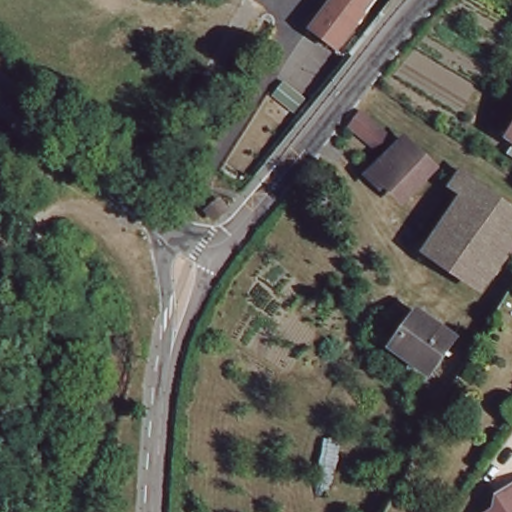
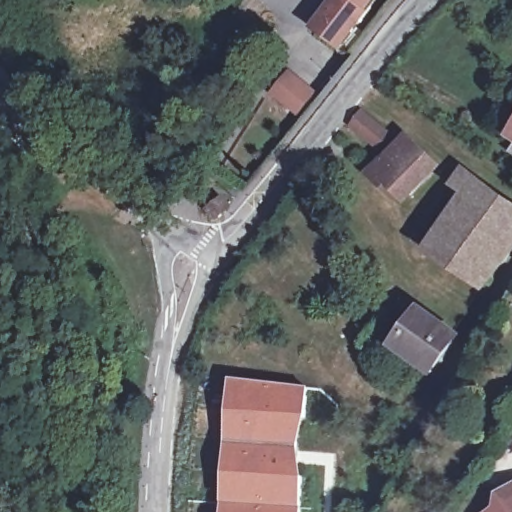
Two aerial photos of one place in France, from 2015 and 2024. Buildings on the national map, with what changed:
unchanged [(362,17),(338,52),(313,33),(337,0),(375,0),(362,17)]
unchanged [(360,111),(389,134),(378,149),(350,125),(360,111)]
unchanged [(512,135),(512,138),(511,137),(512,135)]
unchanged [(410,200),(391,182),(382,190),(369,178),(405,144),(436,173),(410,200)]
unchanged [(512,146),(512,155),(508,152),(512,146)]
unchanged [(423,252),(458,199),(449,190),(458,173),(487,194),(494,200),(511,211),(512,212),(512,249),(479,291),(423,252)]
unchanged [(216,219),(209,211),(221,201),(227,209),(216,219)]
unchanged [(419,311),(454,336),(429,372),(394,347),(419,311)]
new [(310,387),(308,418),(301,446),(307,478),(306,489),(304,512),(220,512),(229,378),(310,387)]
unchanged [(512,503),(512,512),(499,512),(502,503),(512,503)]

